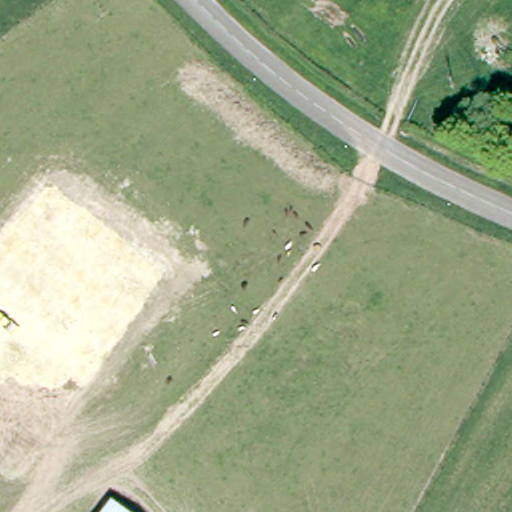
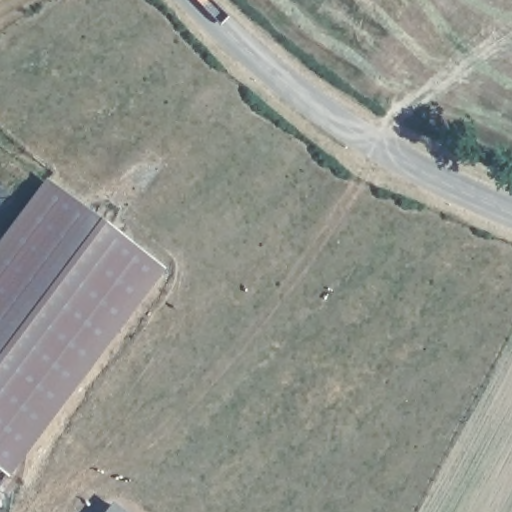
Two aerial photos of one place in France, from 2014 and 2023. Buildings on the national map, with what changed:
new [(165,268),(8,475),(0,469),(0,236),(45,178),(165,268)]
unchanged [(127,512),(104,512),(112,501),(127,512)]

